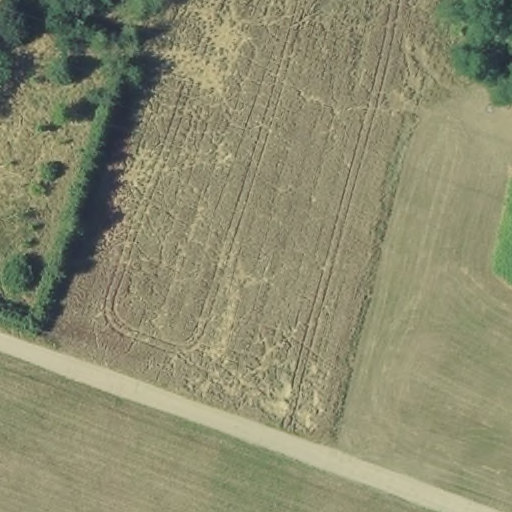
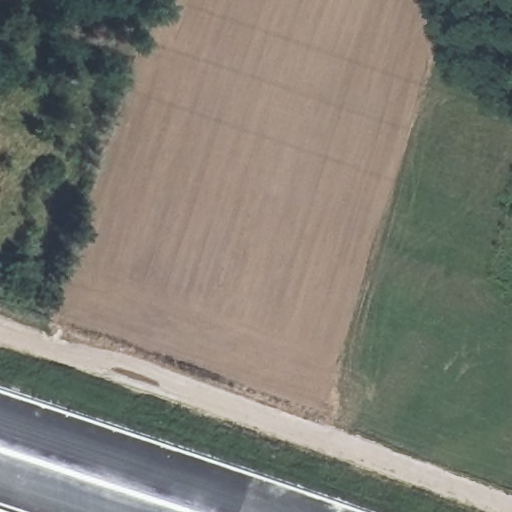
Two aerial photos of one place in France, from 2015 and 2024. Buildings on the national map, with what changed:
[]

